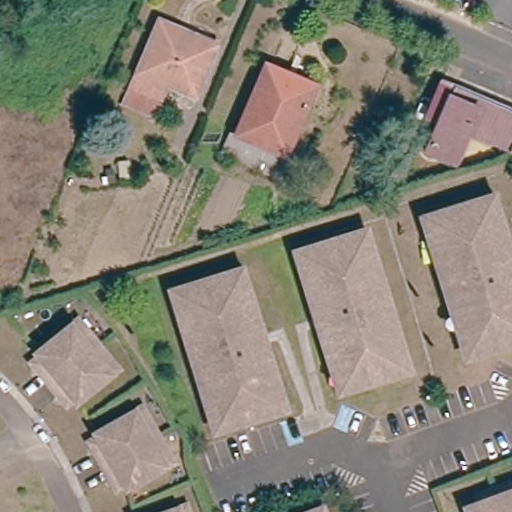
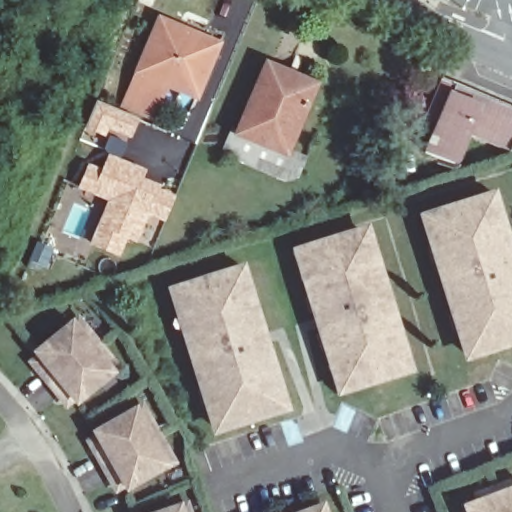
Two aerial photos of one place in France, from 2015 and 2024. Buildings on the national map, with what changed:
unchanged [(187,30),(184,37),(212,50),(195,91),(166,80),(160,95),(131,84),(158,19),(187,30)]
unchanged [(313,86),(285,152),(240,133),(267,67),(313,86)]
unchanged [(443,126),(432,121),(447,85),(467,94),(512,112),(512,140),(478,125),(459,168),(431,156),(443,126)]
new [(140,120),(131,140),(108,130),(103,137),(86,131),(98,100),(140,120)]
new [(101,170),(108,154),(146,170),(143,178),(162,186),(160,190),(175,195),(165,224),(149,216),(136,243),(128,240),(119,257),(89,246),(109,202),(76,190),(88,162),(101,170)]
unchanged [(469,358),(452,304),(447,305),(436,271),(441,270),(424,215),(483,197),(493,194),(502,222),(501,223),(506,240),(510,238),(512,246),(512,255),(511,255),(512,260),(512,345),(469,358)]
unchanged [(330,365),(332,365),(327,348),(322,350),(317,334),(322,332),(316,312),(312,313),(307,296),(311,295),(306,279),(304,280),(296,250),(305,247),(365,230),(381,285),(386,283),(397,317),(392,318),(408,373),(349,391),(339,394),(330,365)]
unchanged [(275,417),(215,435),(198,381),(194,383),(183,349),(188,347),(170,293),(230,275),(239,271),(248,300),(247,300),(252,317),(256,315),(261,331),(257,333),(263,353),(269,351),(274,368),(269,370),(274,386),(275,385),(284,415),(275,417)]
unchanged [(51,381),(34,355),(40,350),(79,325),(85,320),(94,334),(111,361),(120,375),(115,378),(75,405),(69,408),(51,381)]
unchanged [(104,463),(87,435),(94,431),(134,408),(141,405),(149,419),(165,447),(173,461),(166,465),(126,487),(120,491),(104,463)]
unchanged [(467,505),(481,500),(478,492),(495,486),(511,480),(512,484),(512,512),(469,512),(467,505)]
unchanged [(179,509),(185,506),(187,512),(170,512),(179,509)]
unchanged [(318,510),(318,512),(312,512),(318,510)]

